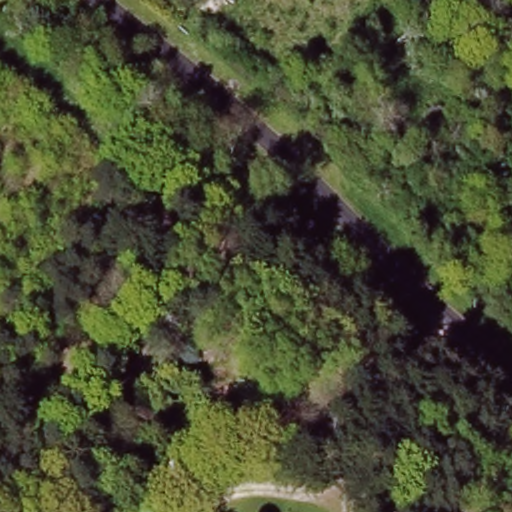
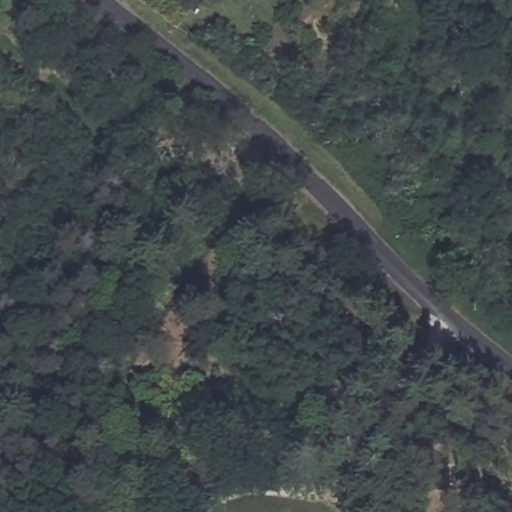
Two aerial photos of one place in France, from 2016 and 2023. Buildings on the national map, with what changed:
unchanged [(145,386),(177,408),(167,422),(135,400),(145,386)]

